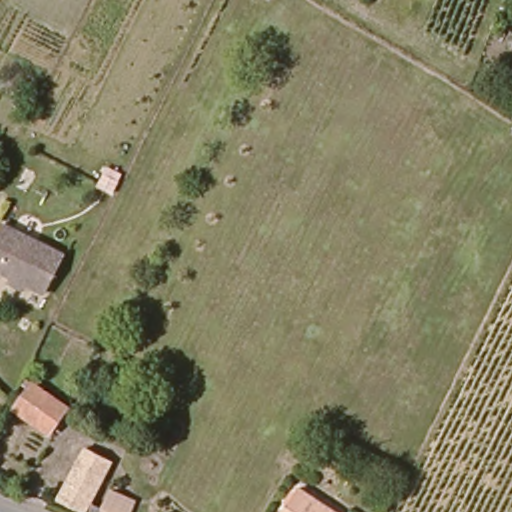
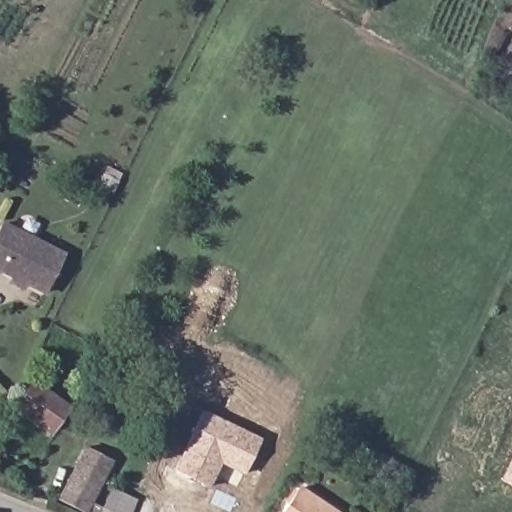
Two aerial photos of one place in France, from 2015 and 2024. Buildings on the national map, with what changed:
unchanged [(66,251),(46,291),(1,267),(0,269),(0,229),(5,219),(66,251)]
unchanged [(49,433),(15,411),(36,386),(69,407),(49,433)]
new [(244,475),(220,464),(209,487),(172,470),(200,410),(262,438),(244,475)]
unchanged [(84,512),(57,496),(85,445),(115,465),(105,483),(138,500),(134,512),(84,512)]
new [(498,480),(512,453),(512,487),(498,480)]
unchanged [(339,512),(275,512),(293,481),(339,512)]

